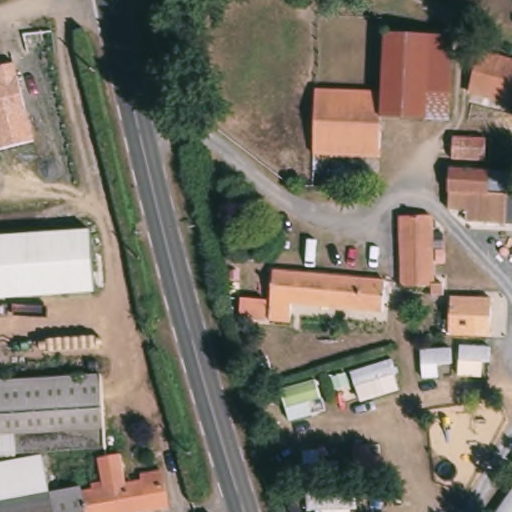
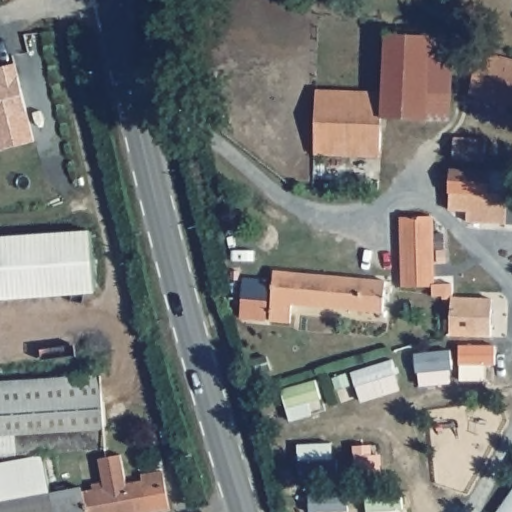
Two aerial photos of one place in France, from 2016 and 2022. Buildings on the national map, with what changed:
unchanged [(386,39),(455,41),(451,125),(383,122),(384,98),(386,39)]
unchanged [(36,142),(0,151),(0,67),(20,61),(36,142)]
unchanged [(510,106),(472,98),(479,64),(512,71),(512,97),(511,97),(510,106)]
unchanged [(382,161),(317,159),(318,95),(384,98),(383,122),(382,161)]
unchanged [(456,138),(488,140),(487,161),(455,159),(456,138)]
unchanged [(452,210),(453,191),(455,171),(511,175),(510,196),(509,214),(452,210)]
unchanged [(437,288),(447,288),(447,300),(436,300),(435,291),(406,291),(407,271),(404,222),(435,222),(437,272),(437,288)]
unchanged [(92,232),(97,294),(0,302),(0,237),(92,232)]
unchanged [(295,322),(273,319),(275,312),(275,308),(278,271),(389,281),(387,312),(296,304),(296,311),(295,315),(295,322)]
unchanged [(453,339),(455,302),(492,304),(495,304),(493,341),(487,341),(453,339)]
unchanged [(96,373),(105,447),(0,462),(0,385),(96,373)]
unchanged [(57,501),(100,494),(100,486),(110,485),(105,459),(126,454),(132,486),(147,482),(147,472),(167,467),(174,507),(150,512),(59,512),(57,501)]
unchanged [(51,495),(82,489),(83,497),(57,501),(59,512),(0,512),(0,464),(42,456),(51,495)]

